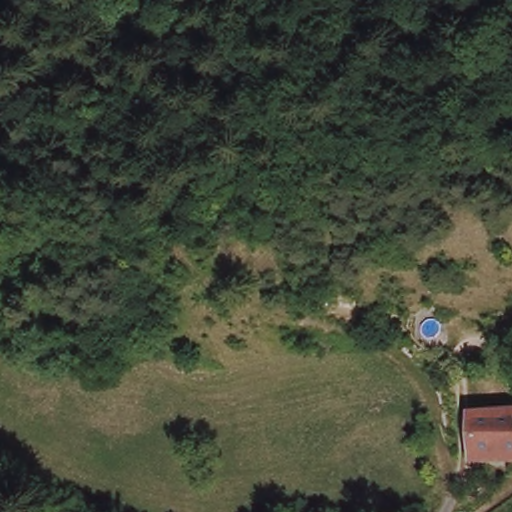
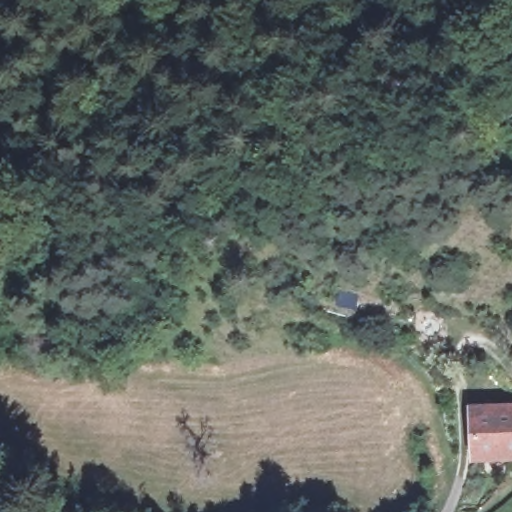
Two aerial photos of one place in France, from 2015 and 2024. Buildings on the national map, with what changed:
unchanged [(473,415),(484,412),(512,410),(512,453),(473,460),(472,436),(473,415)]

